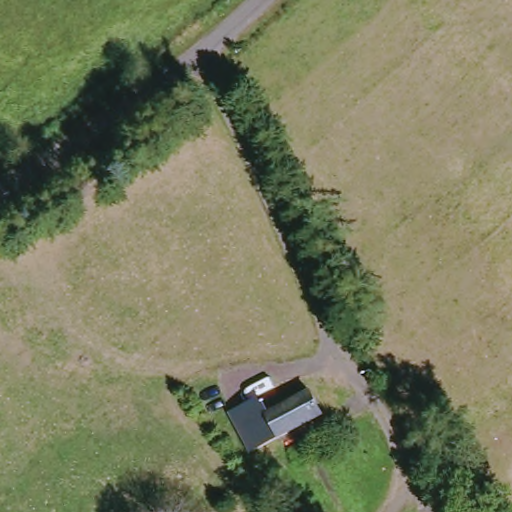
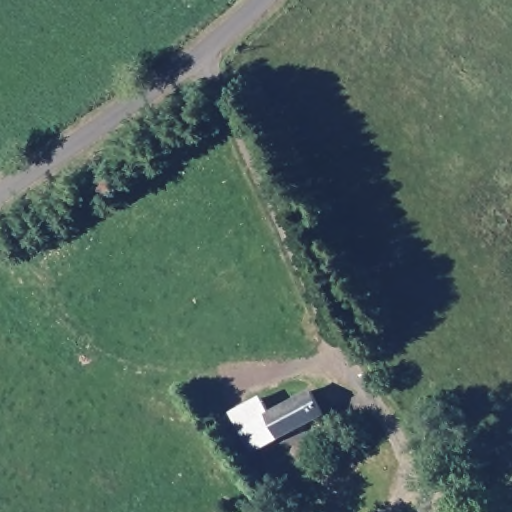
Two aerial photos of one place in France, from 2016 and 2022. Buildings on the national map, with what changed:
unchanged [(252,452),(233,414),(262,399),(270,414),(311,392),(323,414),(252,452)]

